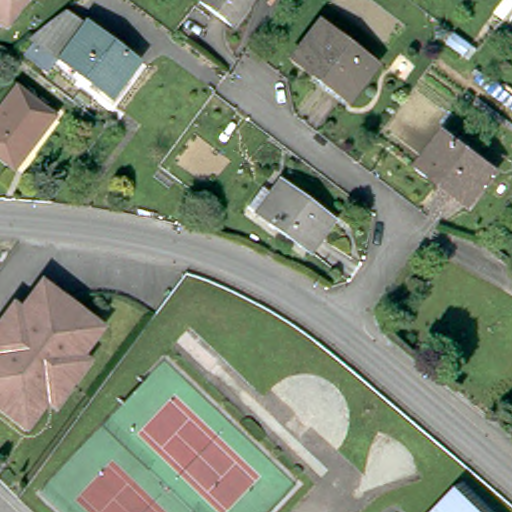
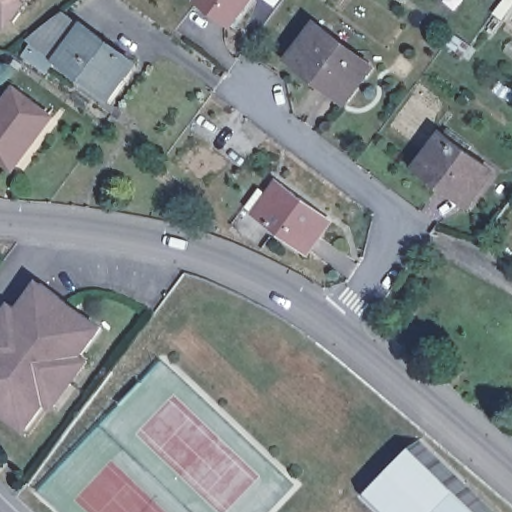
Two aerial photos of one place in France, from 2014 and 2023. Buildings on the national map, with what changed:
unchanged [(6,26),(0,22),(0,0),(25,0),(6,26)]
unchanged [(232,26),(199,0),(252,0),(232,26)]
unchanged [(82,25),(85,22),(138,63),(112,98),(30,37),(64,11),(82,25)]
unchanged [(318,24),(374,65),(348,99),(293,58),(318,24)]
unchanged [(16,88),(54,116),(14,168),(0,157),(0,109),(16,88)]
unchanged [(445,131),(496,170),(470,204),(419,165),(445,131)]
unchanged [(270,193),(280,180),(333,221),(310,253),(248,206),(263,187),(270,193)]
unchanged [(25,430),(0,411),(0,320),(1,319),(11,305),(19,311),(40,284),(100,329),(79,357),(87,363),(71,385),(55,408),(45,402),(25,430)]
new [(370,493),(415,444),(460,482),(431,512),(378,512),(365,497),(370,493)]
unchanged [(490,512),(431,512),(460,482),(490,512)]

